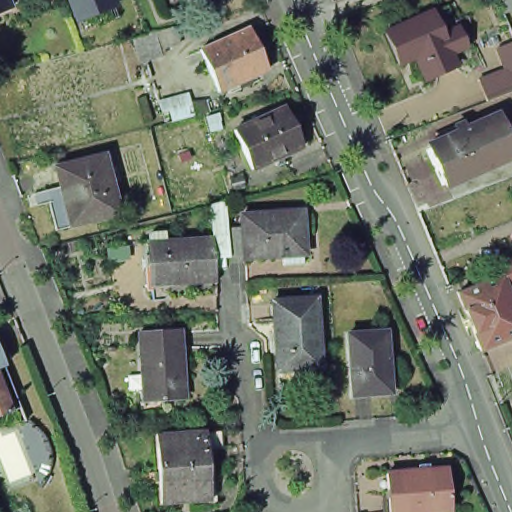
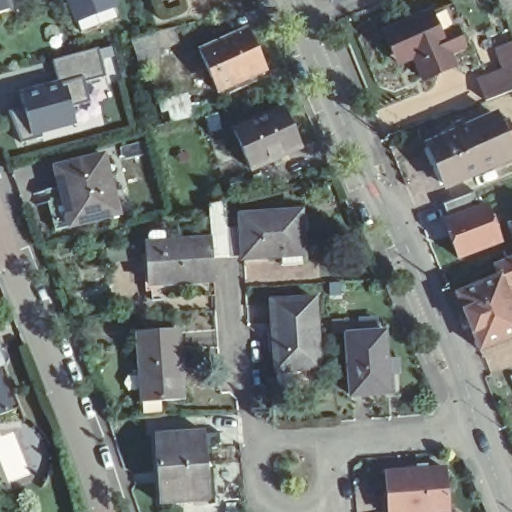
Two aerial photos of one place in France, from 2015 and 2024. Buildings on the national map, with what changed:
unchanged [(74,24),(65,0),(116,0),(119,9),(74,24)]
unchanged [(163,0),(170,0),(165,2),(163,0)]
unchanged [(498,0),(512,0),(512,9),(503,12),(498,0)]
unchanged [(424,13),(435,38),(448,67),(416,81),(403,51),(402,50),(393,54),(383,32),(424,13)]
demolished [(161,55),(146,60),(142,48),(143,48),(139,36),(146,34),(153,32),(161,55)]
unchanged [(244,82),(246,87),(233,93),(231,88),(213,96),(195,54),(243,32),(261,74),(244,82)]
unchanged [(490,48),(509,41),(512,49),(512,88),(483,99),(479,101),(471,80),(475,79),(498,70),(490,48)]
new [(105,78),(85,83),(90,102),(71,107),(76,125),(41,134),(42,139),(20,144),(7,113),(22,109),(17,92),(57,81),(52,60),(97,49),(105,78)]
unchanged [(171,121),(168,108),(190,102),(193,115),(171,121)]
unchanged [(301,151),(280,160),(282,166),(275,169),(273,163),(251,173),(233,133),(283,111),(301,151)]
unchanged [(446,132),(444,125),(450,122),(453,129),(485,115),(494,134),(508,127),(512,135),(512,151),(503,154),(503,156),(435,186),(417,145),(446,132)]
unchanged [(226,116),(230,127),(218,130),(219,134),(210,136),(205,121),(226,116)]
unchanged [(40,189),(54,185),(50,166),(100,154),(114,213),(63,224),(49,229),(40,189)]
unchanged [(143,285),(141,242),(205,239),(203,205),(218,201),(218,204),(220,230),(235,229),(235,216),(295,212),(298,256),(296,256),(297,266),(276,267),(276,257),(237,260),(237,259),(237,258),(237,257),(222,258),(205,259),(206,283),(143,285)]
new [(503,245),(458,262),(442,220),(486,201),(491,215),(503,245)]
unchanged [(512,244),(506,231),(512,229),(512,244)]
unchanged [(487,277),(489,276),(483,266),(490,264),(512,255),(512,282),(500,286),(505,301),(500,303),(511,332),(468,350),(445,294),(487,277)]
unchanged [(260,376),(260,361),(255,291),(298,288),(303,358),(305,373),(260,376)]
unchanged [(166,328),(171,398),(132,401),(127,331),(166,328)]
unchanged [(373,397),(335,400),(330,339),(368,336),(373,397)]
unchanged [(3,363),(0,365),(0,356),(3,363)]
unchanged [(6,409),(0,413),(0,396),(6,409)]
unchanged [(192,431),(207,430),(208,447),(194,448),(197,499),(148,502),(143,433),(192,430),(192,431)]
unchanged [(444,512),(383,512),(380,478),(441,474),(444,512)]

